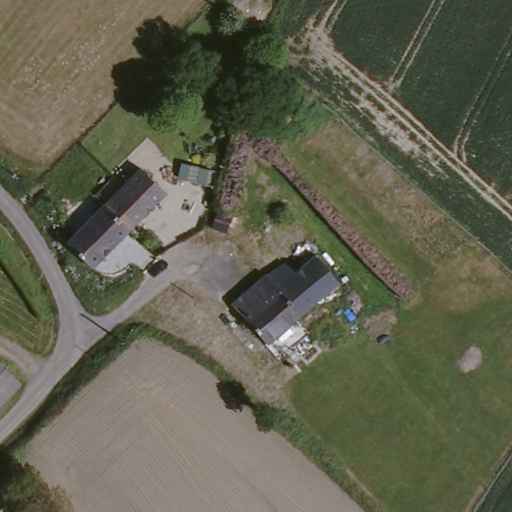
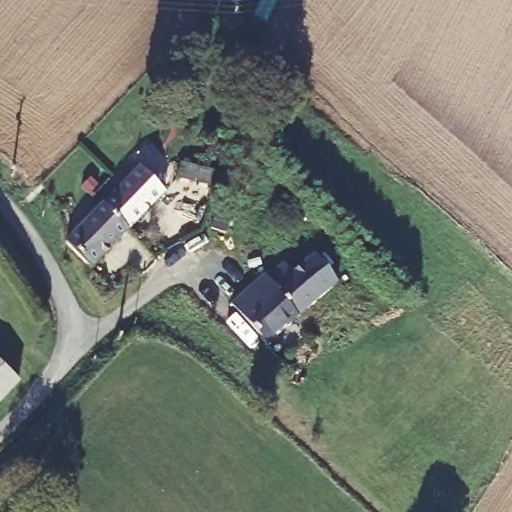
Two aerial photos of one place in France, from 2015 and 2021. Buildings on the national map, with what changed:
unchanged [(140,175),(166,199),(86,269),(72,255),(61,243),(140,175)]
unchanged [(216,225),(221,208),(232,212),(226,228),(216,225)]
unchanged [(265,281),(264,279),(281,267),(286,274),(310,256),(335,287),(297,318),(265,281)]
unchanged [(262,346),(228,302),(261,277),(264,279),(265,281),(297,318),(262,346)]
unchanged [(7,379),(4,384),(0,388),(0,372),(7,379)]

